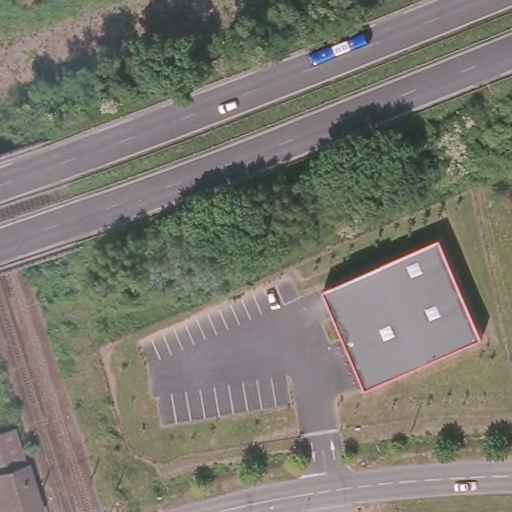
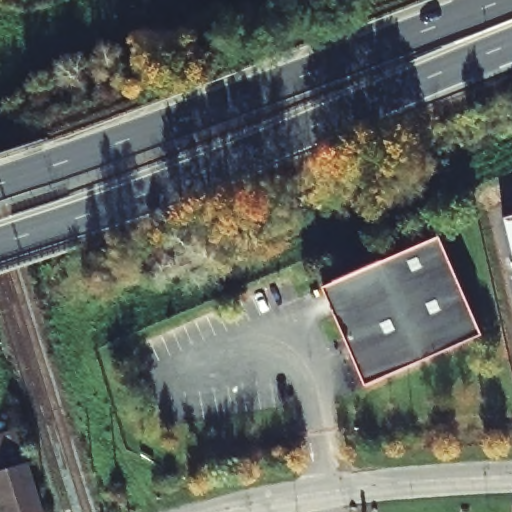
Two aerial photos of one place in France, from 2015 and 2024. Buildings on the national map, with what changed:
new [(512,216),(512,253),(503,218),(512,216)]
unchanged [(440,237),(483,336),(366,386),(324,288),(440,237)]
unchanged [(7,512),(0,491),(0,472),(6,471),(0,453),(0,433),(19,427),(47,512),(7,512)]

